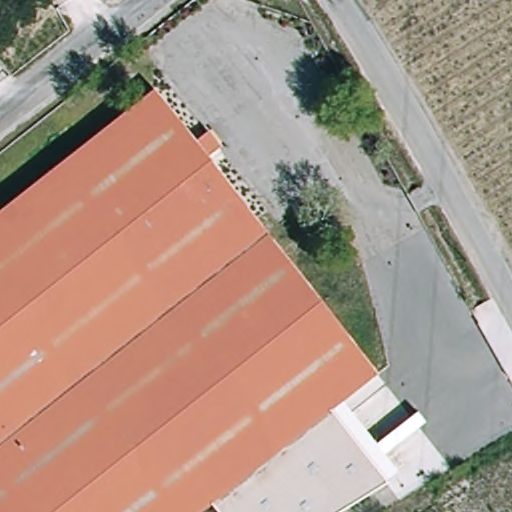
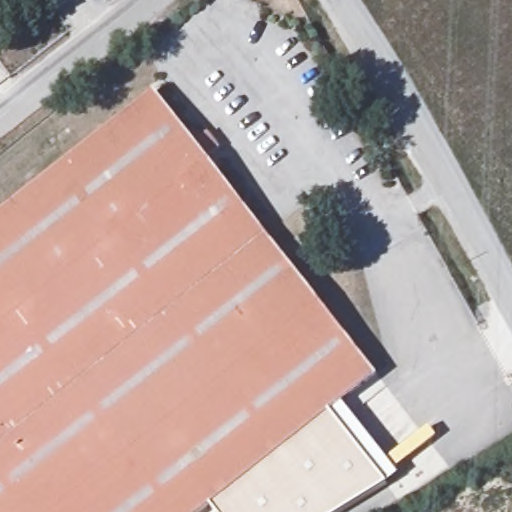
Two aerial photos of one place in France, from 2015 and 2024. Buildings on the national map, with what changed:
unchanged [(235,475),(204,499),(188,512),(0,512),(0,209),(155,88),(374,366),(327,403),(235,475)]
unchanged [(327,403),(390,485),(338,512),(208,512),(213,508),(204,499),(235,475),(327,403)]

